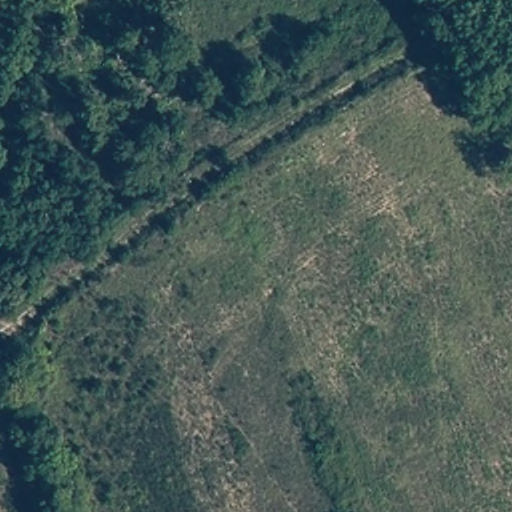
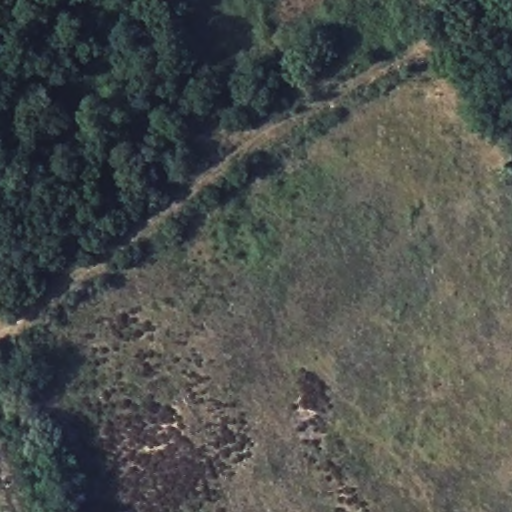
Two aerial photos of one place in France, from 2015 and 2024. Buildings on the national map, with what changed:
[]

